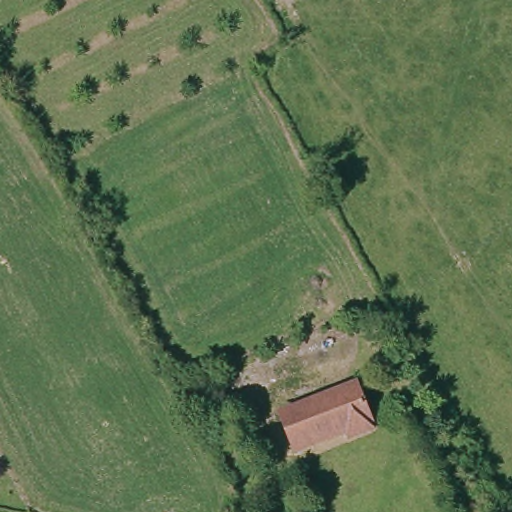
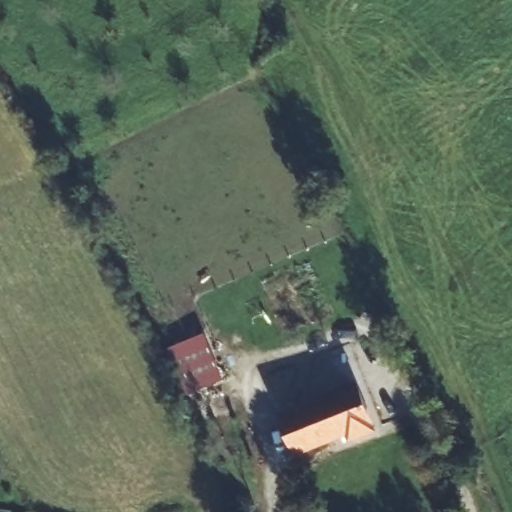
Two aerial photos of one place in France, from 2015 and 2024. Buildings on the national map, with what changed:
new [(167,348),(205,332),(225,380),(187,395),(167,348)]
unchanged [(355,387),(375,430),(355,440),(351,432),(303,455),(286,418),(355,387)]

